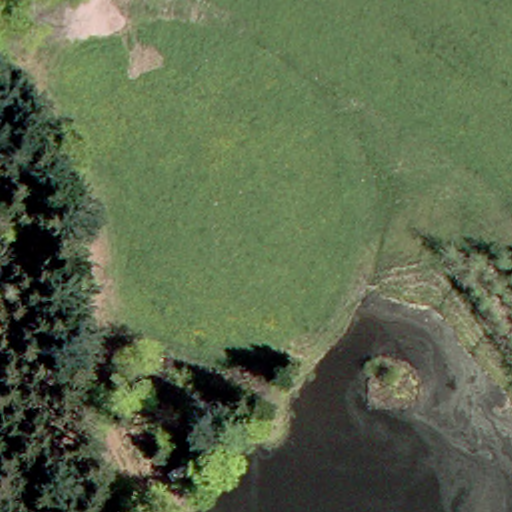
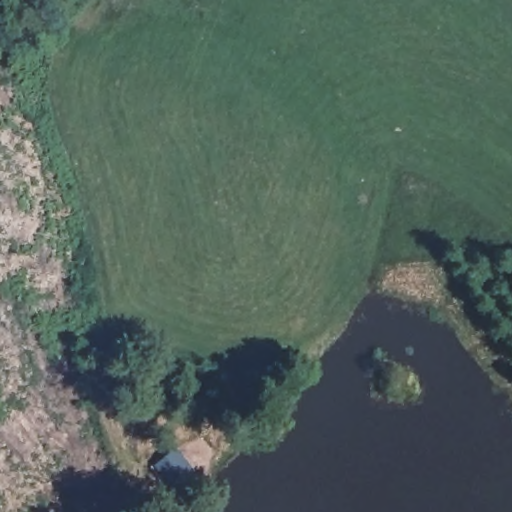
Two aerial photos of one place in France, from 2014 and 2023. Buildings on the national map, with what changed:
[]

